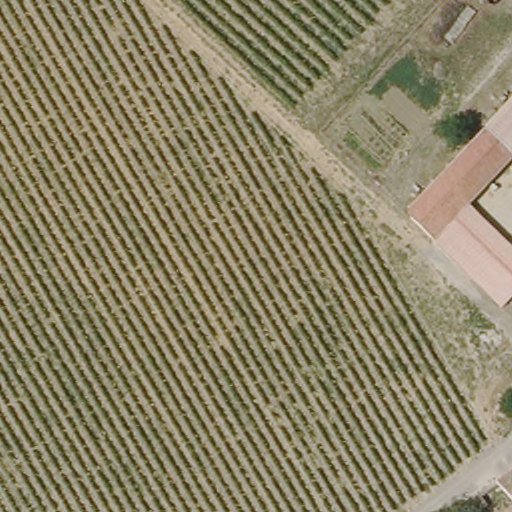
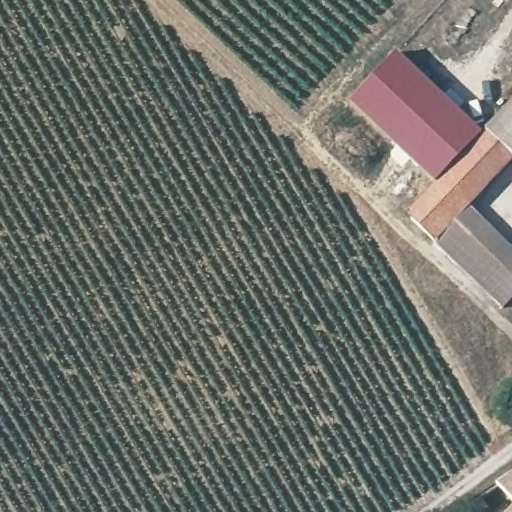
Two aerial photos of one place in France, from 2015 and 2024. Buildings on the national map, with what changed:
new [(435,182),(349,102),(396,51),(482,132),(435,182)]
unchanged [(485,129),(512,102),(512,155),(507,150),(485,129)]
unchanged [(409,208),(485,129),(507,150),(431,230),(409,208)]
unchanged [(512,297),(503,305),(431,230),(461,198),(512,249),(512,297)]
demolished [(512,383),(512,415),(504,423),(489,408),(512,383)]
unchanged [(512,478),(512,512),(498,512),(484,496),(512,478)]

